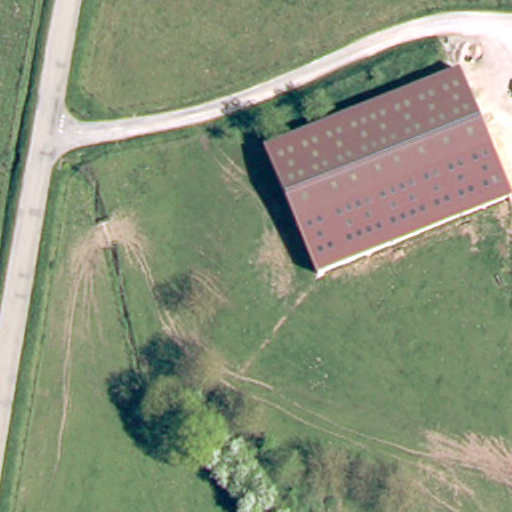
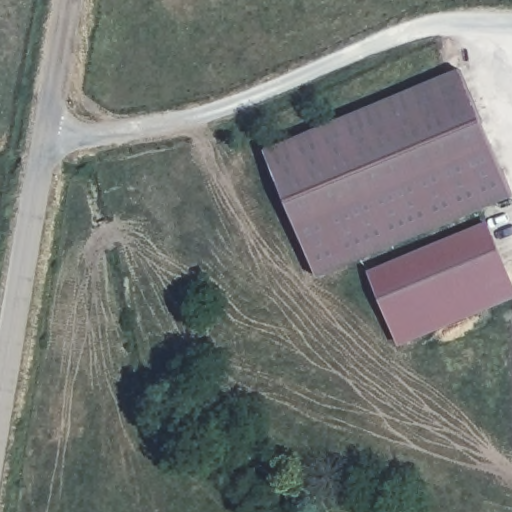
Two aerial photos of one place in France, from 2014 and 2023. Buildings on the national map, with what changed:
unchanged [(458,65),(492,149),(295,230),(261,148),(458,65)]
unchanged [(512,198),(512,200),(316,279),(295,230),(492,149),(512,198)]
new [(512,297),(399,345),(368,270),(487,220),(512,280),(512,297)]

